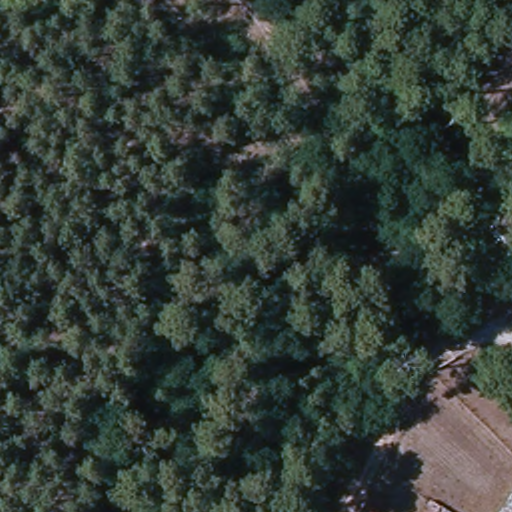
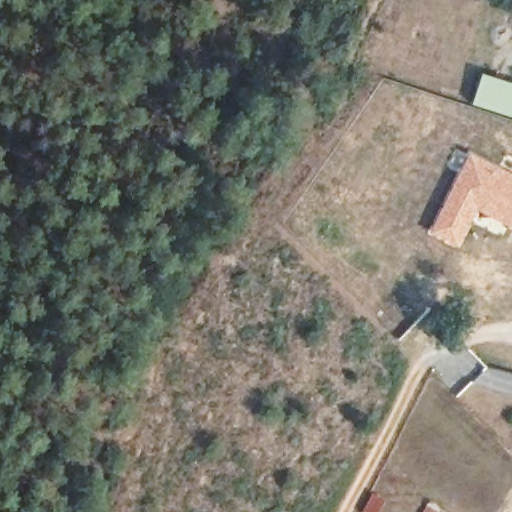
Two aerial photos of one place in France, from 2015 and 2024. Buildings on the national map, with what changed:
new [(475,103),(484,74),(512,83),(512,115),(475,103)]
new [(512,176),(512,228),(477,211),(458,248),(431,234),(470,154),(512,176)]

